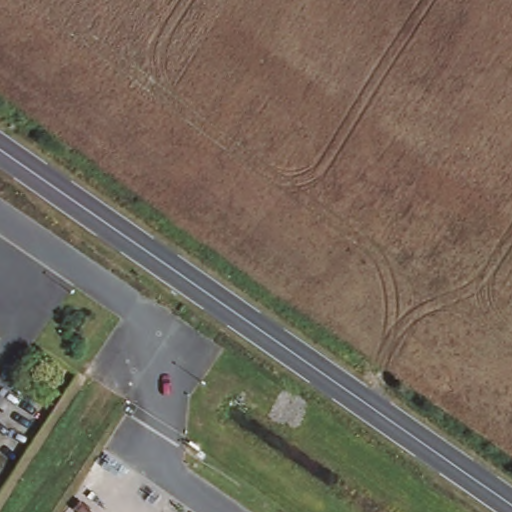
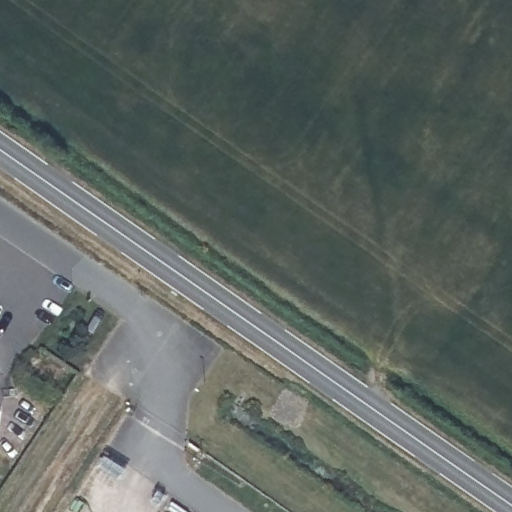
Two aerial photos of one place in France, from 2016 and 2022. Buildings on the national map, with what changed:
unchanged [(0,344),(0,338),(3,340),(0,344)]

